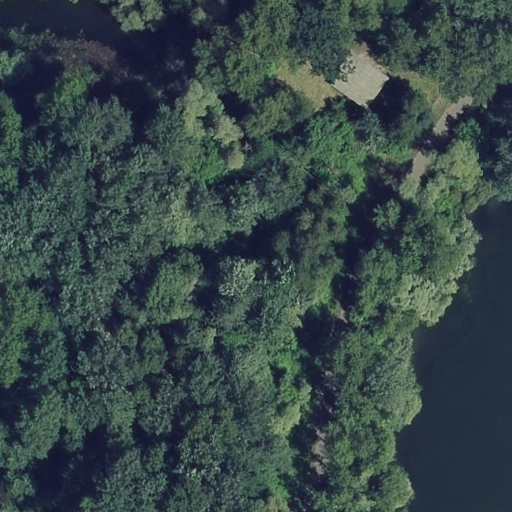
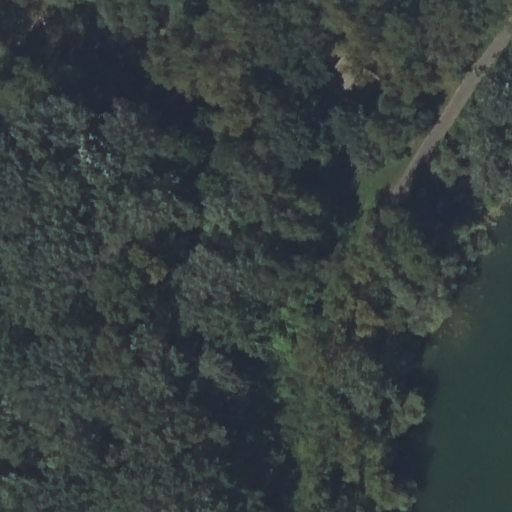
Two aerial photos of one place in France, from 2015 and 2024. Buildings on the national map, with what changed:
unchanged [(389,68),(366,99),(334,76),(354,45),(389,68)]

